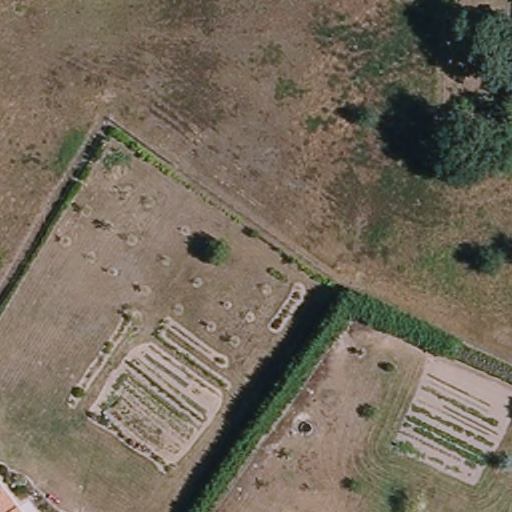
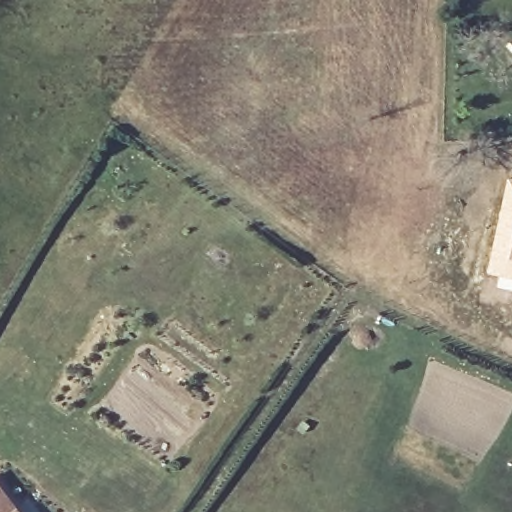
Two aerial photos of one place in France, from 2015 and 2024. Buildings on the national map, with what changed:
new [(512,177),(512,291),(495,286),(498,275),(486,271),(507,176),(512,177)]
unchanged [(22,512),(0,512),(0,484),(22,512)]

